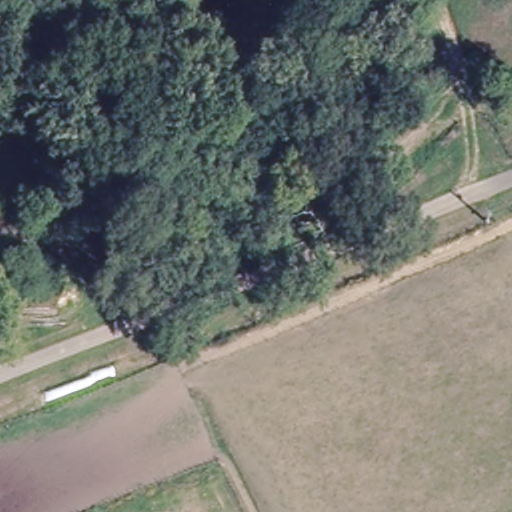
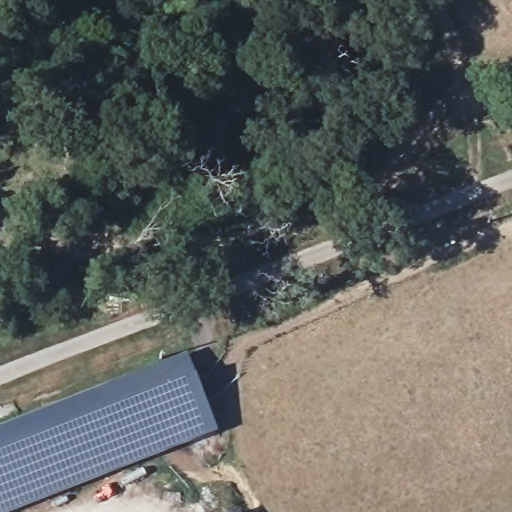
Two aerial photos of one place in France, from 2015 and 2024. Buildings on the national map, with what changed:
new [(186,352),(217,433),(13,512),(0,512),(0,427),(186,352)]

